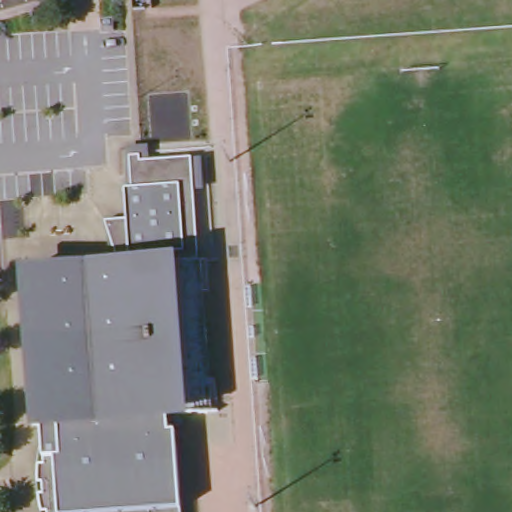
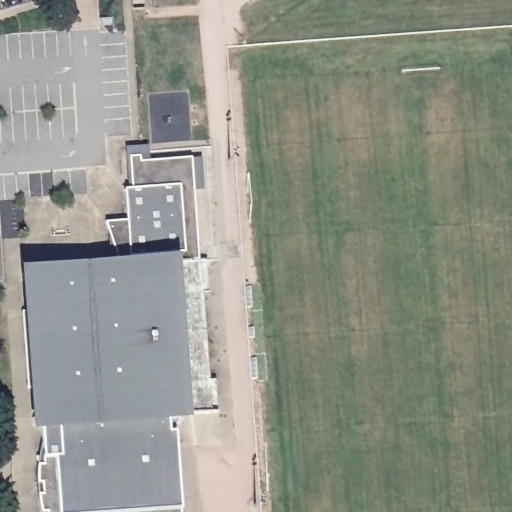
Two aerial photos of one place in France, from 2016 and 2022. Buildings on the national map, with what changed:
unchanged [(127,223),(125,192),(130,191),(125,149),(150,145),(151,163),(206,159),(214,246),(199,249),(200,261),(119,267),(105,225),(127,223)]
unchanged [(119,267),(200,261),(213,412),(189,413),(170,416),(172,447),(179,447),(183,512),(43,512),(39,495),(45,494),(44,484),(38,484),(40,465),(45,465),(42,425),(34,426),(32,419),(42,418),(40,390),(30,391),(25,314),(35,313),(32,281),(22,281),(22,274),(119,267)]

